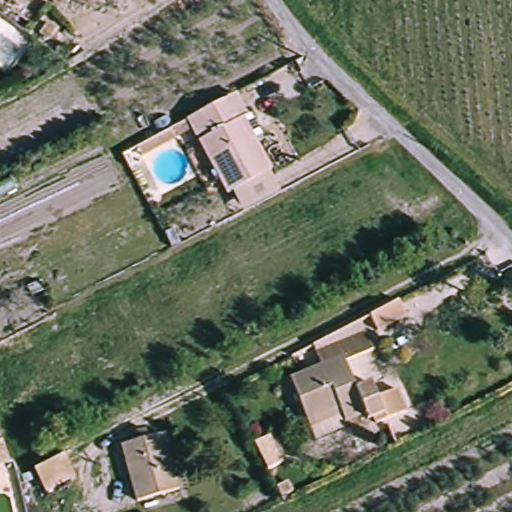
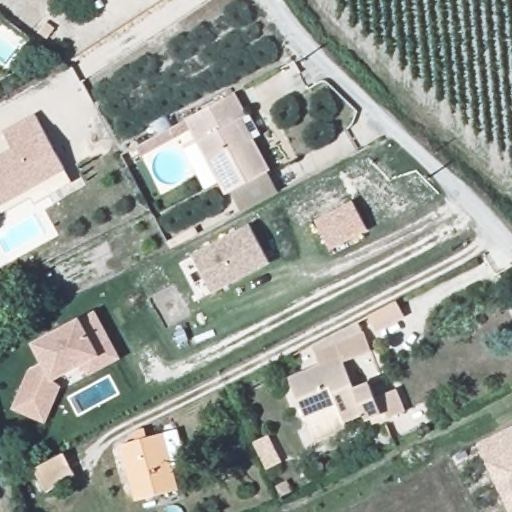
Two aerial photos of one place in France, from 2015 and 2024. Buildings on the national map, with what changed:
unchanged [(249,138),(253,136),(269,167),(227,190),(187,116),(233,89),(246,112),(238,117),(249,138)]
new [(0,159),(15,150),(3,131),(35,114),(65,171),(0,207),(0,159)]
new [(351,201),(368,230),(331,251),(315,222),(351,201)]
new [(191,255),(249,226),(270,264),(211,294),(191,255)]
new [(122,361),(90,376),(83,365),(64,376),(47,422),(12,410),(31,370),(43,364),(33,346),(80,320),(96,313),(122,361)]
unchanged [(371,345),(343,360),(355,383),(323,401),(303,412),(288,384),(320,366),(318,361),(314,353),(363,327),(366,335),(371,345)]
unchanged [(381,419),(378,412),(364,420),(360,413),(343,422),(336,407),(308,423),(303,412),(323,401),(355,383),(368,377),(377,397),(395,389),(401,400),(404,407),(381,419)]
new [(485,464),(487,462),(478,443),(512,427),(512,512),(509,512),(485,464)]
unchanged [(177,487),(136,498),(128,461),(123,440),(165,430),(167,440),(175,477),(177,487)]
unchanged [(0,466),(0,440),(11,465),(0,466)]
unchanged [(42,500),(33,477),(63,463),(73,485),(42,500)]

